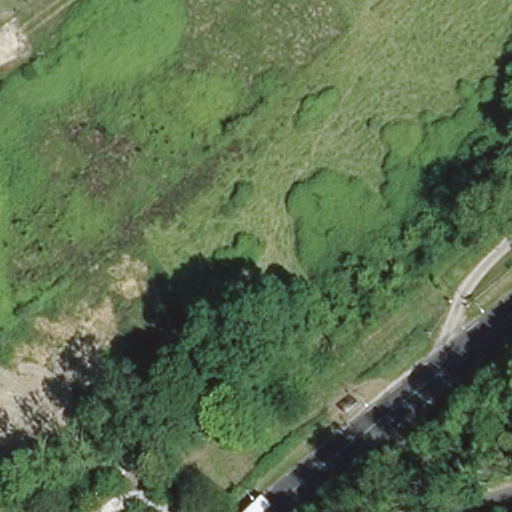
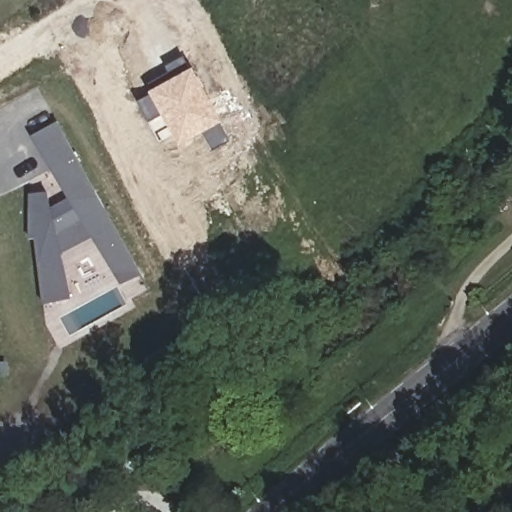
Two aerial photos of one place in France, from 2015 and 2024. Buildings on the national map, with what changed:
new [(151,94),(150,91),(151,90),(147,84),(168,72),(166,66),(184,57),(191,69),(192,67),(222,122),(221,123),(231,141),(212,152),(202,133),(180,146),(173,135),(160,142),(137,102),(151,94)]
new [(68,197),(31,136),(57,122),(142,274),(121,285),(92,237),(61,254),(69,288),(71,298),(43,304),(39,265),(35,237),(29,239),(30,194),(47,191),(51,207),(68,197)]

